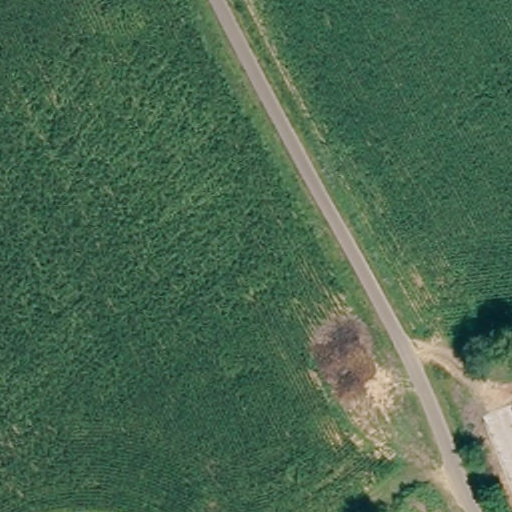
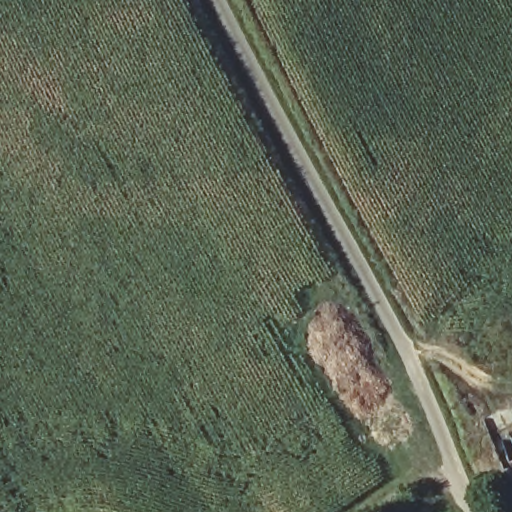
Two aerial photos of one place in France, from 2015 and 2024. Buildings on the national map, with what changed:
[]

